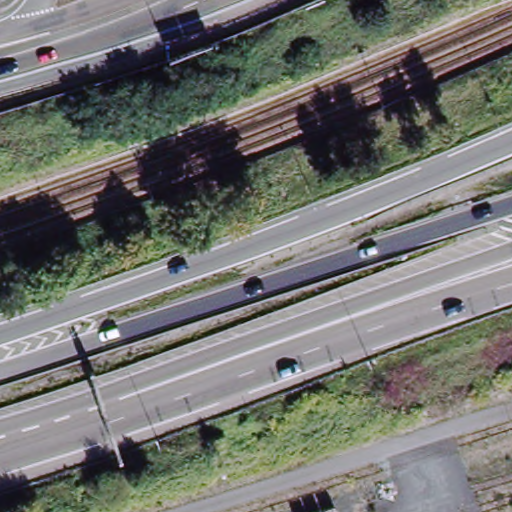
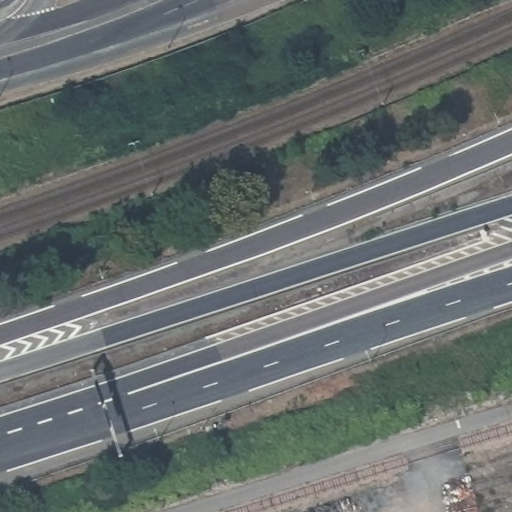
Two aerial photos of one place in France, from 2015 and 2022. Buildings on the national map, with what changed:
[]

